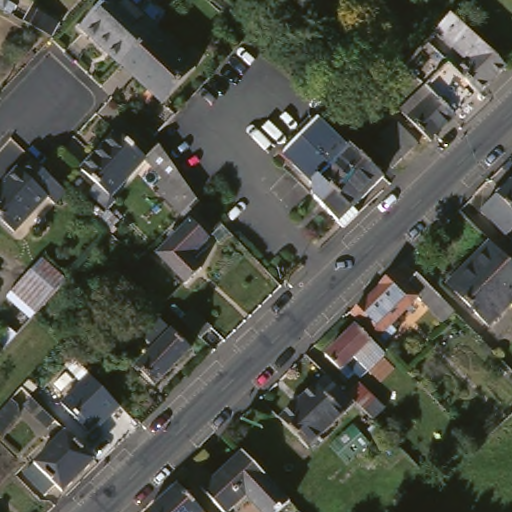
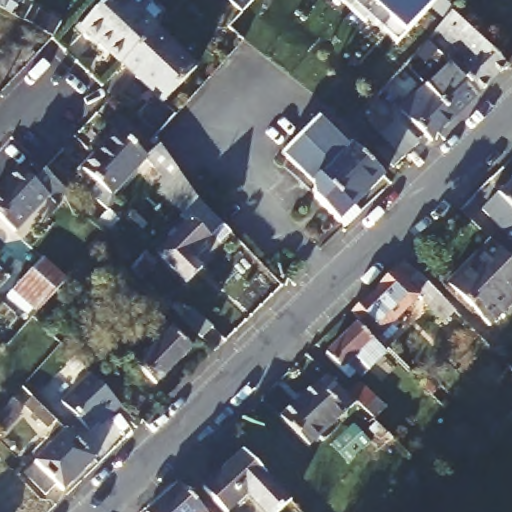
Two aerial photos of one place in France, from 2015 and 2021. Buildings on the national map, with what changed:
unchanged [(0,1),(0,0),(13,0),(9,6),(0,1)]
unchanged [(155,31),(122,67),(81,29),(108,0),(147,0),(151,5),(142,14),(157,29),(155,31)]
new [(346,0),(437,0),(403,35),(395,45),(346,0)]
unchanged [(25,22),(32,8),(60,24),(53,37),(25,22)]
unchanged [(462,70),(471,60),(440,31),(455,15),(512,67),(486,93),(462,70)]
unchanged [(196,70),(163,105),(122,67),(155,31),(196,70)]
unchanged [(486,93),(461,117),(430,85),(454,61),(462,70),(486,93)]
unchanged [(461,117),(437,142),(406,110),(430,85),(461,117)]
unchanged [(281,155),(318,119),(338,139),(302,175),(281,155)]
unchanged [(382,140),(379,137),(396,121),(418,145),(402,160),(394,169),(374,148),(382,140)]
unchanged [(115,204),(85,176),(121,138),(151,165),(115,204)]
unchanged [(312,185),(302,175),(338,139),(348,149),(351,145),(384,177),(354,208),(359,213),(345,226),(315,199),(312,185)]
unchanged [(187,220),(163,197),(166,195),(161,190),(166,185),(151,165),(156,159),(167,147),(203,204),(187,220)]
unchanged [(0,218),(0,186),(5,181),(2,179),(14,166),(19,170),(30,157),(43,170),(65,190),(53,202),(47,196),(13,230),(0,218)]
unchanged [(502,196),(512,187),(512,234),(510,236),(486,210),(502,196)]
unchanged [(195,263),(206,274),(193,287),(165,260),(178,246),(173,241),(178,235),(182,240),(195,226),(214,244),(195,263)]
unchanged [(236,238),(227,247),(218,237),(227,229),(236,238)]
unchanged [(512,263),(512,306),(489,328),(446,285),(490,241),(512,263)]
unchanged [(34,323),(11,301),(23,289),(41,270),(52,257),(75,278),(64,291),(46,310),(41,315),(34,323)]
unchanged [(146,285),(134,275),(143,266),(151,257),(162,268),(146,285)]
unchanged [(396,325),(401,330),(390,340),(396,347),(387,356),(351,320),(396,276),(398,279),(402,275),(411,285),(418,278),(454,315),(441,329),(418,305),(396,325)]
unchanged [(183,320),(192,310),(212,329),(203,340),(183,320)]
unchanged [(159,354),(145,340),(158,326),(155,323),(159,319),(195,355),(159,390),(141,371),(159,354)]
unchanged [(339,377),(324,362),(356,330),(385,360),(368,376),(362,370),(347,385),(339,377)]
unchanged [(120,406),(108,418),(105,415),(88,431),(62,403),(91,376),(120,406)]
unchanged [(281,423),(328,380),(347,400),(360,387),(385,415),(372,426),(356,410),(308,453),(281,423)]
unchanged [(0,412),(14,396),(19,400),(16,403),(19,415),(0,437),(0,412)]
unchanged [(23,406),(32,397),(56,421),(47,430),(23,406)]
unchanged [(72,487),(66,481),(56,491),(33,468),(76,426),(104,455),(72,487)]
unchanged [(284,512),(270,512),(252,493),(232,512),(228,512),(207,490),(249,451),(295,502),(284,512)]
unchanged [(189,479),(218,512),(155,512),(154,511),(189,479)]

